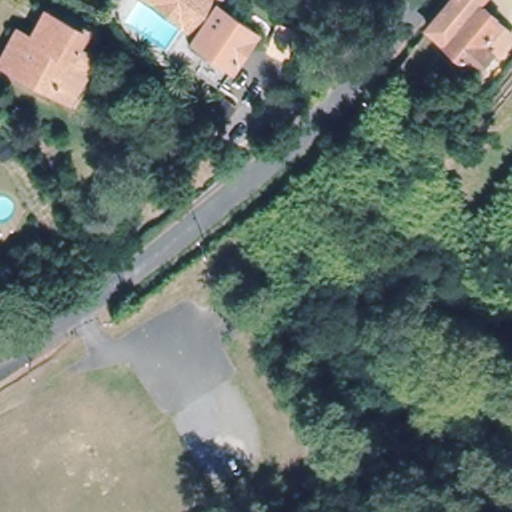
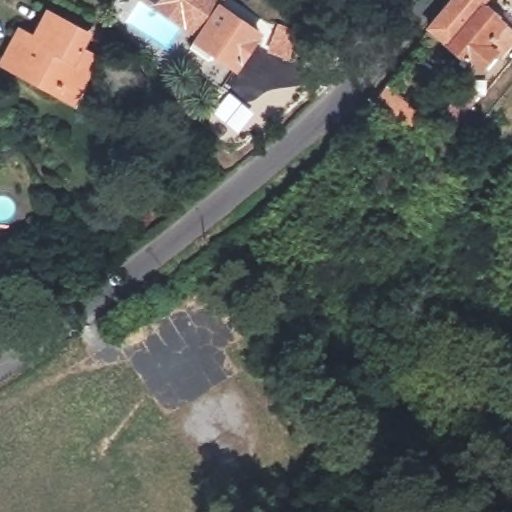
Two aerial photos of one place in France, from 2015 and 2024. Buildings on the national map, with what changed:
unchanged [(151,6),(140,0),(208,0),(205,6),(213,10),(215,5),(255,30),(235,62),(213,49),(207,59),(189,49),(198,35),(181,25),(153,7),(151,6)]
unchanged [(493,50),(476,69),(428,27),(451,0),(482,0),(478,5),(501,25),(512,34),(512,37),(498,54),(493,50)]
unchanged [(58,94),(4,69),(19,35),(34,41),(45,16),(84,35),(78,48),(96,56),(81,87),(74,101),(58,94)]
unchanged [(464,93),(482,95),(459,122),(446,111),(464,93)]

